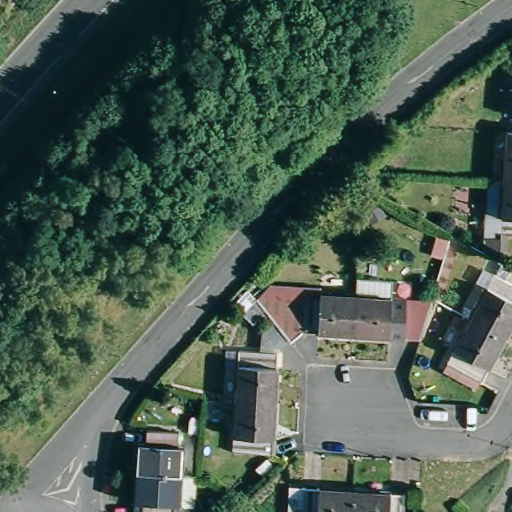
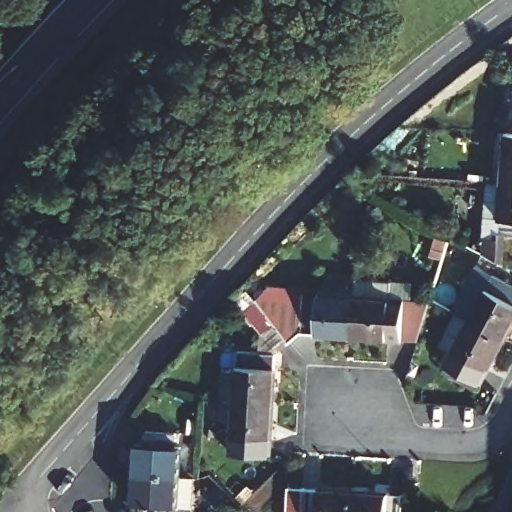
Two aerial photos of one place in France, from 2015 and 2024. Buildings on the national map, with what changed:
unchanged [(495,218),(498,169),(510,170),(512,130),(512,219),(508,219),(495,218)]
unchanged [(512,286),(512,327),(505,340),(472,322),(496,278),(512,286)]
unchanged [(422,342),(409,341),(359,337),(309,333),(312,296),(361,300),(363,282),(398,285),(397,302),(412,303),(434,305),(433,306),(422,342)]
unchanged [(312,296),(309,333),(299,333),(287,340),(255,301),(266,292),(312,296)]
unchanged [(505,340),(482,384),(449,366),(472,322),(505,340)]
unchanged [(238,354),(276,356),(272,406),(235,404),(238,354)]
unchanged [(269,454),(232,451),(235,404),(272,406),(269,454)]
unchanged [(138,442),(146,442),(146,429),(177,431),(176,444),(181,444),(180,474),(136,471),(138,442)]
unchanged [(179,503),(171,503),(171,512),(142,512),(143,502),(134,502),(136,471),(180,474),(179,503)]
unchanged [(308,490),(359,493),(357,512),(291,512),(293,489),(308,490)]
unchanged [(408,512),(357,512),(359,493),(409,497),(408,512)]

